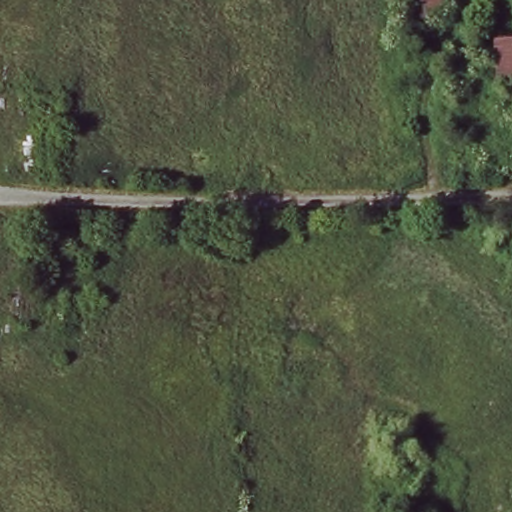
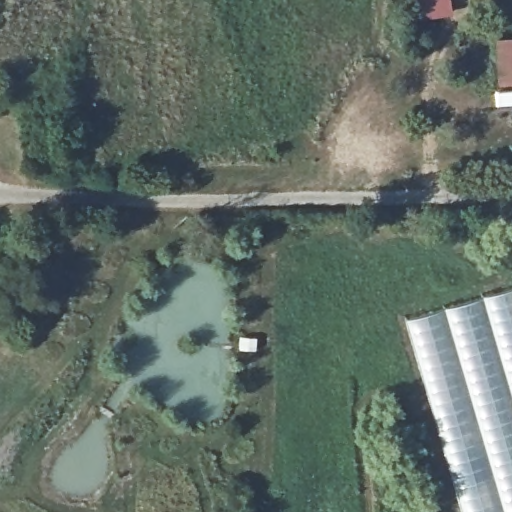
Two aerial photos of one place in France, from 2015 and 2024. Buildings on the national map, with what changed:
unchanged [(410,0),(442,0),(443,5),(415,12),(410,0)]
unchanged [(491,40),(512,39),(512,85),(493,86),(491,40)]
new [(512,512),(461,512),(405,319),(512,287),(512,512)]

